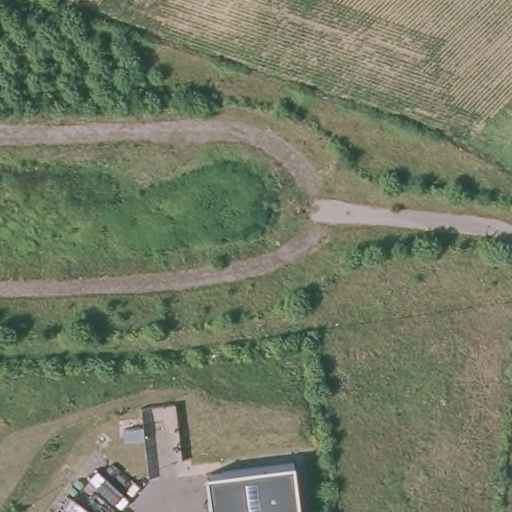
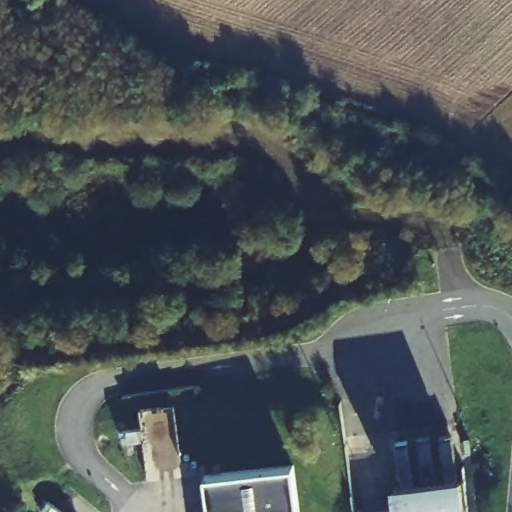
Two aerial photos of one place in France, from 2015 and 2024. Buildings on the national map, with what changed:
unchanged [(205,474),(293,464),(299,512),(210,512),(205,474)]
new [(467,512),(397,512),(393,480),(462,471),(467,512)]

